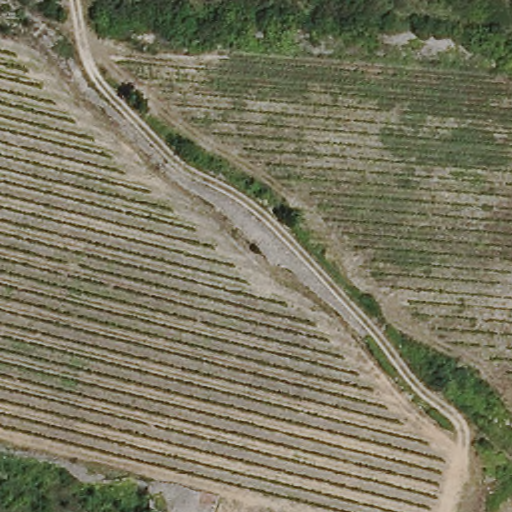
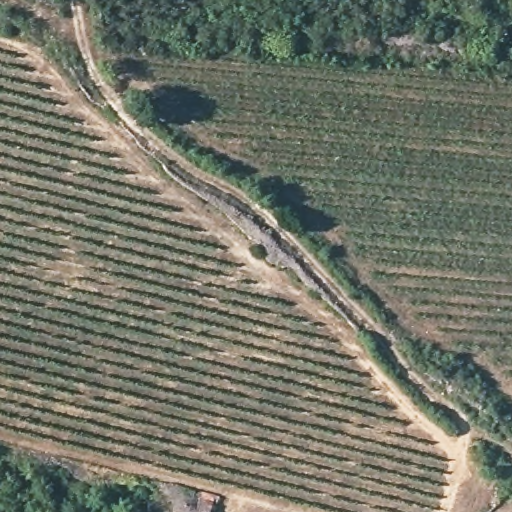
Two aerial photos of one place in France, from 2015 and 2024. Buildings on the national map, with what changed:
[]

